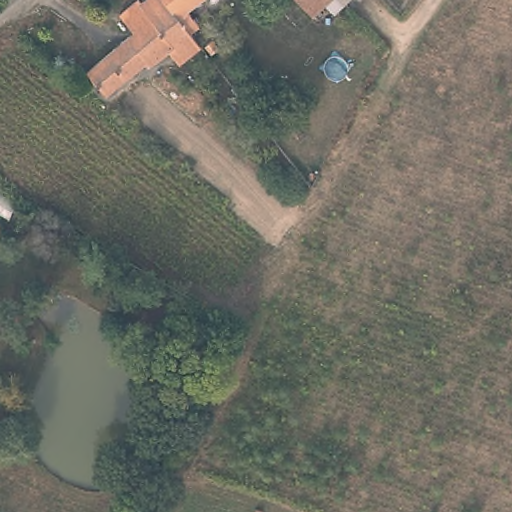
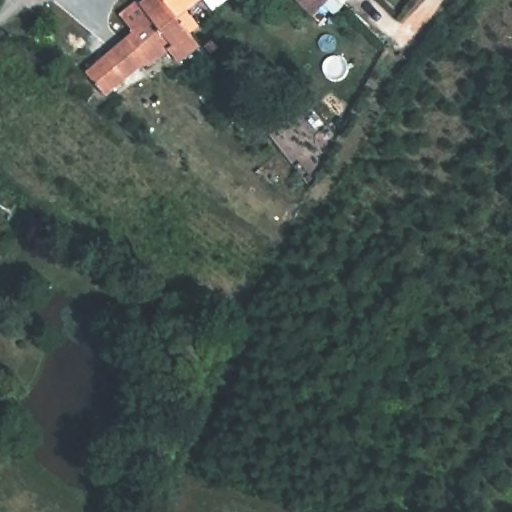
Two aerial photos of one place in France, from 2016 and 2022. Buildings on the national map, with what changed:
unchanged [(144,3),(176,41),(169,48),(171,51),(169,52),(152,65),(148,61),(107,94),(88,70),(136,33),(122,15),(140,0),(144,3)]
unchanged [(182,17),(195,33),(204,44),(185,60),(182,64),(176,56),(171,51),(178,43),(176,41),(144,3),(147,0),(165,0),(181,18),(182,17)]
unchanged [(191,10),(204,25),(195,33),(182,17),(181,18),(165,0),(204,0),(202,2),(191,10)]
unchanged [(332,0),(321,14),(301,0),(332,0)]
unchanged [(212,101),(217,106),(212,111),(207,106),(212,101)]

